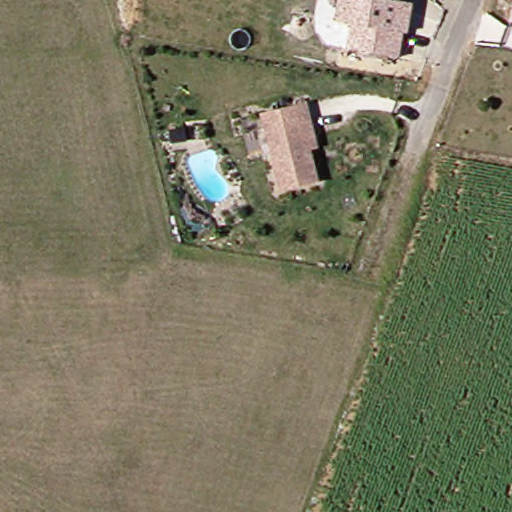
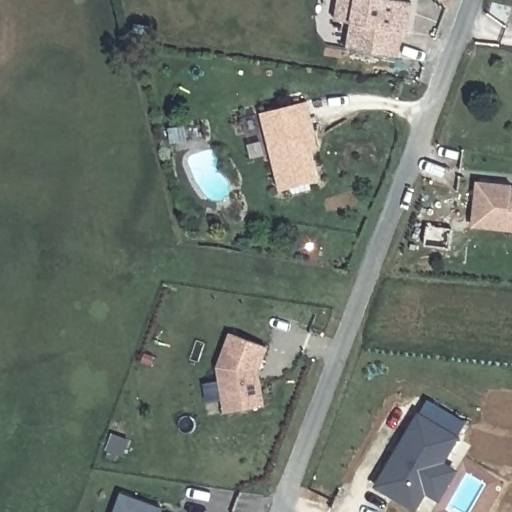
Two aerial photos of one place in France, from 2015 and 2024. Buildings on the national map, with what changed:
unchanged [(337,0),(410,0),(406,24),(400,23),(397,49),(346,39),(350,14),(335,12),(337,0)]
unchanged [(313,125),(310,134),(320,172),(280,182),(261,104),(307,92),(313,125)]
unchanged [(511,185),(512,186),(512,232),(471,227),(475,182),(511,185)]
new [(258,373),(265,407),(223,414),(216,367),(230,333),(267,347),(258,373)]
new [(439,499),(426,491),(415,509),(376,486),(388,466),(393,457),(419,414),(457,437),(442,462),(455,470),(439,499)]
unchanged [(164,507),(163,512),(113,512),(120,492),(164,507)]

